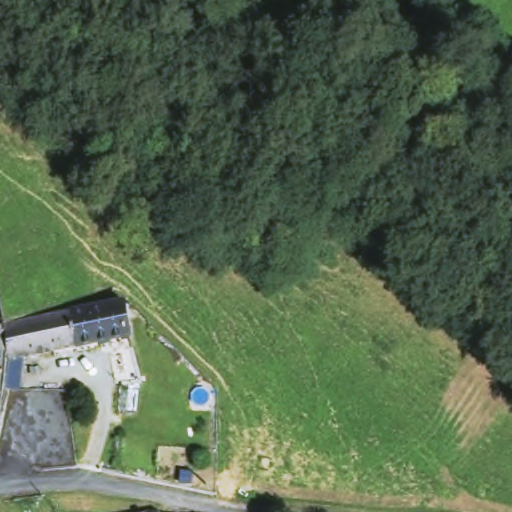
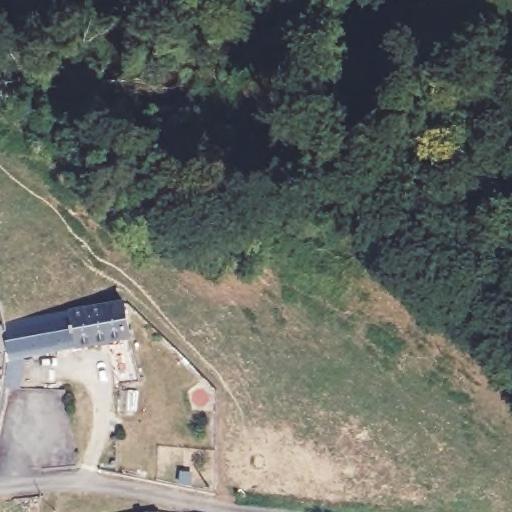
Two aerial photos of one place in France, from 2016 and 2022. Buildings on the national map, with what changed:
unchanged [(128,298),(134,335),(7,356),(3,331),(128,298)]

